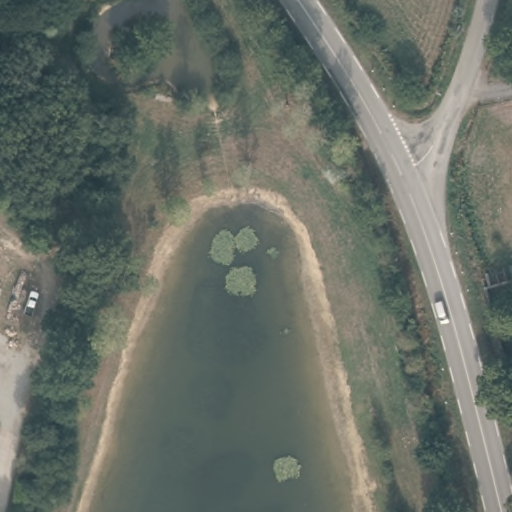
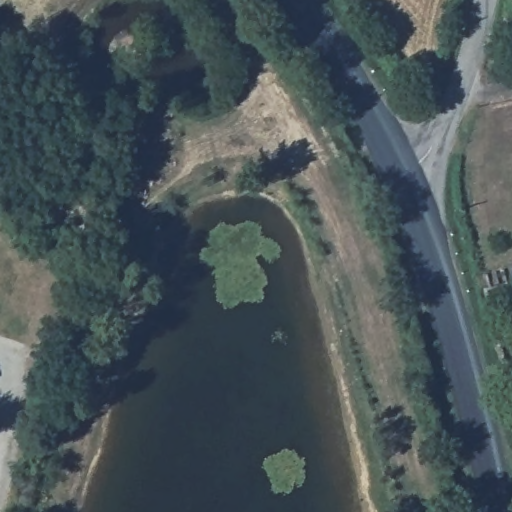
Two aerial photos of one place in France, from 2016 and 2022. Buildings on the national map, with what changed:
unchanged [(512,267),(512,275),(510,267),(512,267)]

